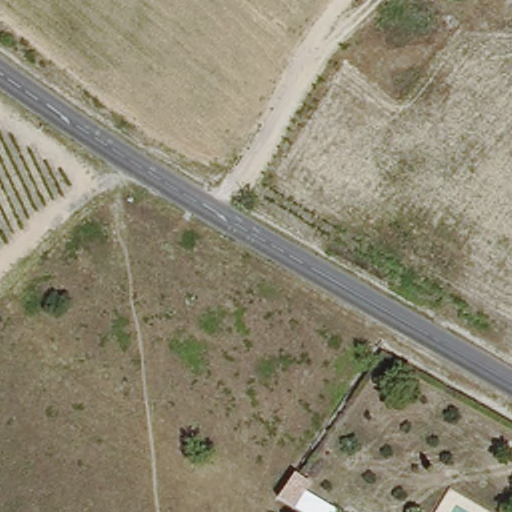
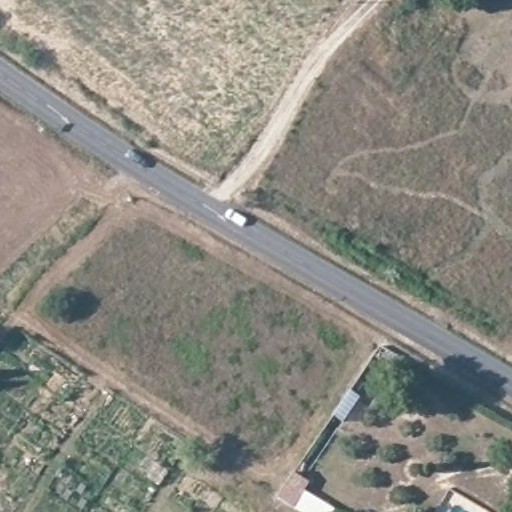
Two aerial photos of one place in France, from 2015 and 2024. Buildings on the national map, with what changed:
unchanged [(290,502),(300,487),(306,491),(298,507),(290,502)]

